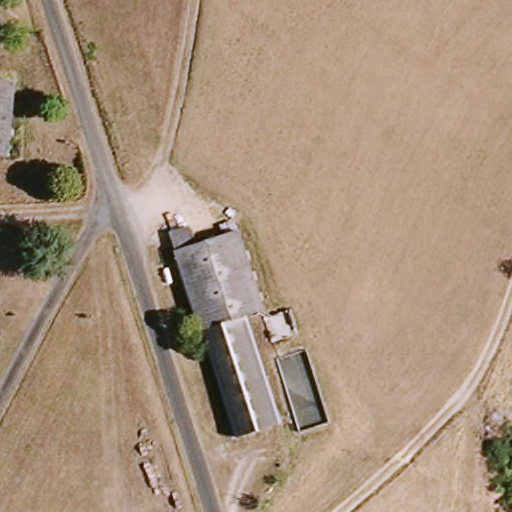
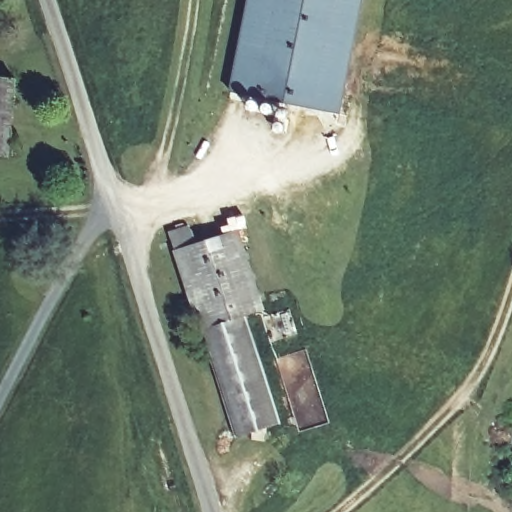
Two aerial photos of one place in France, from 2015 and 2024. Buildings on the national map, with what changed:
new [(291,104),(289,109),(288,114),(284,116),(278,116),(251,110),(248,107),(247,104),(249,97),(229,92),(247,0),(362,0),(341,113),(291,104)]
unchanged [(0,77),(12,78),(4,153),(0,152),(0,77)]
unchanged [(201,330),(198,330),(171,250),(174,249),(169,231),(183,227),(190,244),(221,234),(218,225),(233,220),(237,231),(261,307),(244,317),(278,423),(237,438),(201,330)]

